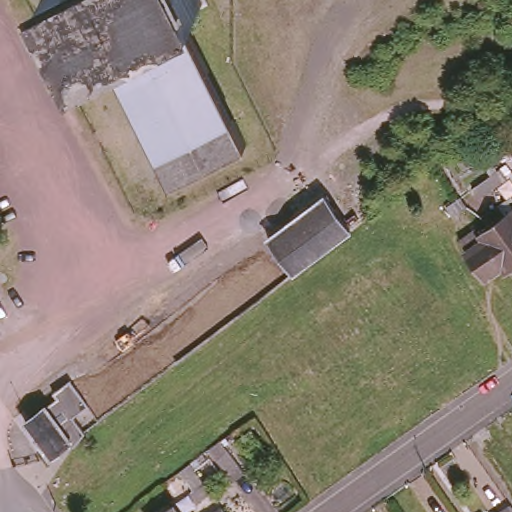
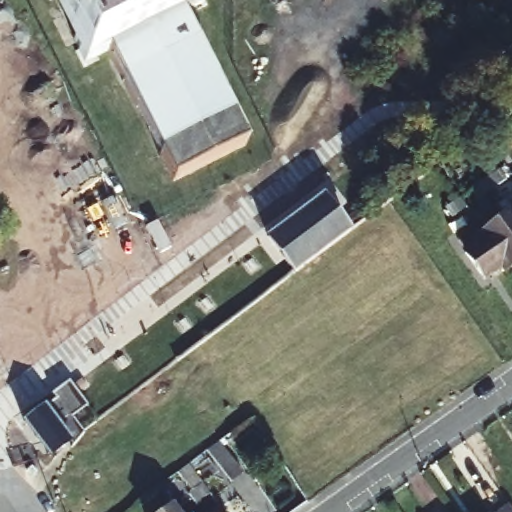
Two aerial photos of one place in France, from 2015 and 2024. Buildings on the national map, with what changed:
unchanged [(85,64),(53,0),(204,0),(205,1),(180,14),(245,142),(172,180),(108,51),(85,64)]
unchanged [(490,176),(490,175),(500,167),(507,177),(491,188),(478,197),(472,187),(485,179),(486,180),(490,176)]
unchanged [(322,196),(347,230),(348,230),(347,230),(321,250),(318,252),(303,265),(292,272),(292,271),(267,238),(322,196)]
unchanged [(444,207),(455,199),(457,201),(460,199),(465,206),(450,216),(444,207)]
unchanged [(505,272),(503,270),(502,268),(493,255),(502,248),(503,247),(491,230),(490,232),(487,230),(485,229),(480,221),(495,210),(503,223),(508,230),(512,235),(512,272),(507,275),(505,272)]
unchanged [(508,230),(503,223),(512,217),(512,235),(508,230)]
unchanged [(491,230),(503,247),(502,248),(493,255),(502,268),(503,270),(485,283),(458,245),(470,236),(475,243),(490,232),(491,230)]
unchanged [(33,466),(8,432),(41,408),(36,401),(53,390),(58,396),(73,416),(60,425),(70,438),(70,439),(33,466)]
unchanged [(197,504),(190,494),(205,485),(212,495),(197,504)]
unchanged [(490,512),(507,500),(512,507),(512,512),(490,512)]
unchanged [(175,512),(153,512),(168,501),(175,512)]
unchanged [(201,512),(215,503),(221,512),(201,512)]

